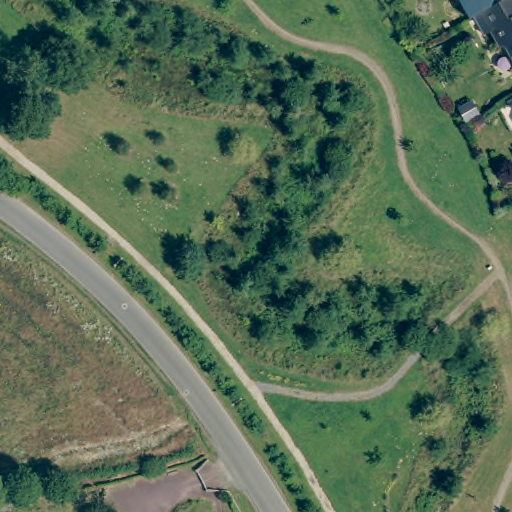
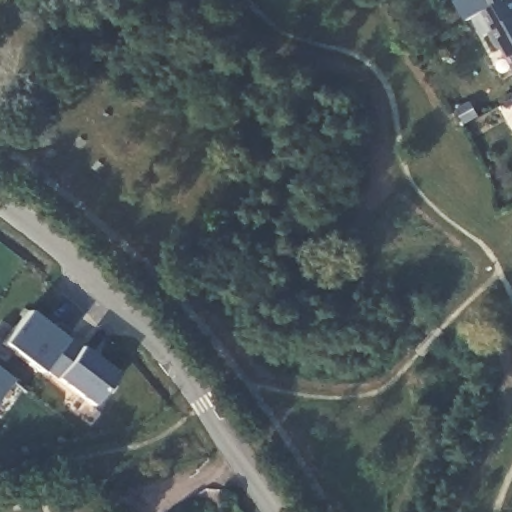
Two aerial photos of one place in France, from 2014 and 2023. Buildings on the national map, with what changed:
unchanged [(505,47),(497,31),(490,35),(480,16),(508,0),(509,0),(512,0),(512,49),(505,47)]
new [(93,406),(3,343),(27,309),(117,375),(93,406)]
new [(0,374),(7,380),(0,390),(0,374)]

